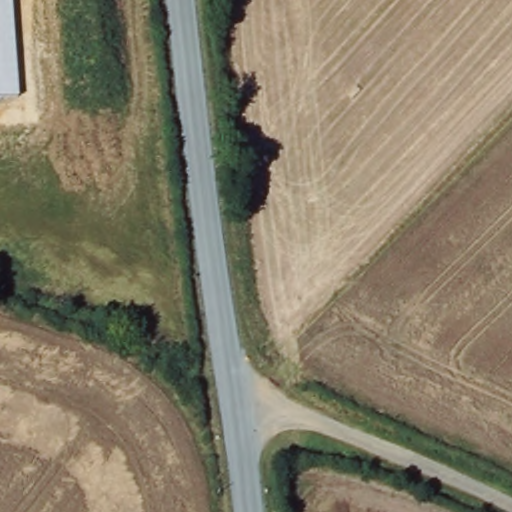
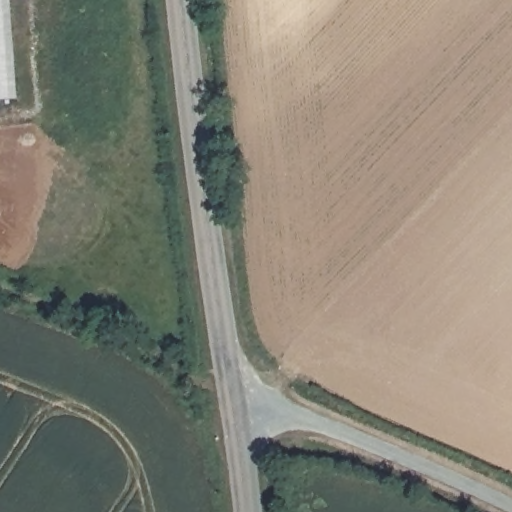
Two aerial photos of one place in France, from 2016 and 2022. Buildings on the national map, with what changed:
unchanged [(19,97),(0,99),(0,0),(12,0),(19,97)]

